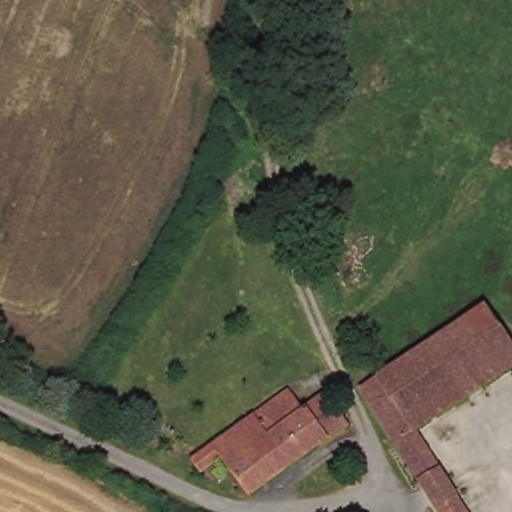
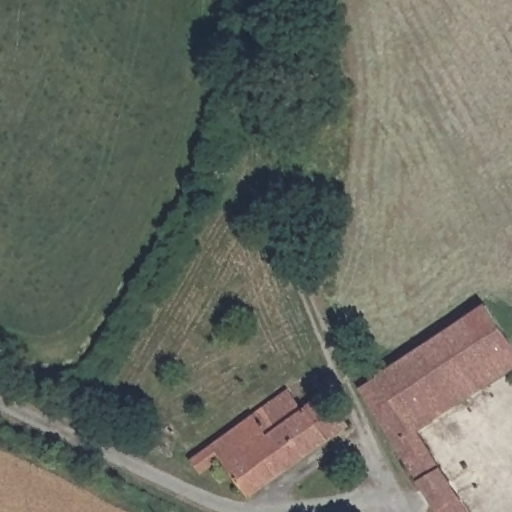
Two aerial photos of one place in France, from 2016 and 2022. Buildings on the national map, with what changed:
unchanged [(490,310),(512,347),(512,373),(410,435),(427,472),(406,486),(362,386),(377,376),(490,310)]
unchanged [(212,460),(193,473),(184,460),(292,391),(297,398),(305,411),(332,397),(352,435),(241,496),(212,460)]
unchanged [(459,512),(430,512),(448,498),(459,512)]

